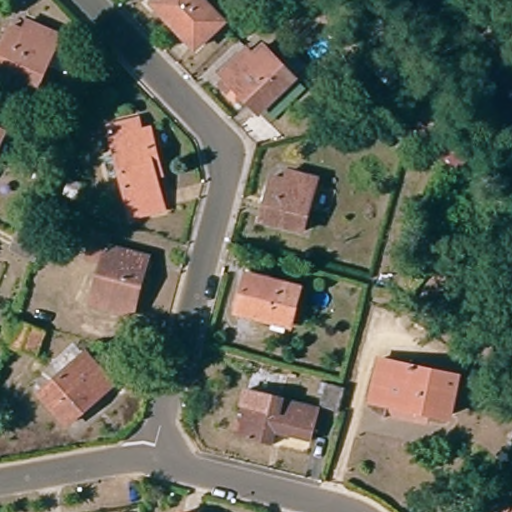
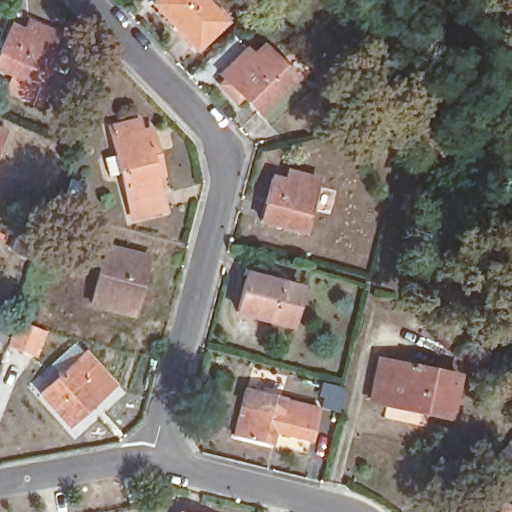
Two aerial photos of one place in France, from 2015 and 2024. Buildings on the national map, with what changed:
unchanged [(222,19),(196,45),(155,2),(157,0),(205,0),(222,19)]
unchanged [(6,90),(12,75),(0,69),(0,51),(10,26),(30,35),(35,25),(59,35),(37,85),(45,89),(39,105),(6,90)]
unchanged [(243,51),(250,59),(265,45),(295,75),(259,110),(222,73),(243,51)]
unchanged [(395,79),(383,90),(370,75),(380,64),(395,79)]
unchanged [(442,159),(411,123),(416,105),(417,104),(455,149),(442,159)]
unchanged [(145,116),(147,128),(157,126),(171,175),(165,175),(173,205),(137,214),(125,168),(116,170),(110,149),(120,146),(114,123),(145,116)]
unchanged [(4,122),(0,132),(0,120),(4,122)]
unchanged [(316,170),(303,226),(262,216),(275,172),(295,177),(297,167),(316,170)]
unchanged [(110,235),(107,246),(132,252),(131,257),(148,262),(134,313),(91,302),(101,262),(85,258),(92,230),(110,235)]
unchanged [(35,241),(26,264),(1,255),(11,231),(35,241)]
unchanged [(252,273),(304,285),(295,325),(243,311),(252,273)]
unchanged [(37,332),(30,356),(1,347),(0,350),(0,335),(5,337),(10,322),(37,332)]
unchanged [(86,346),(113,376),(68,416),(40,386),(86,346)]
unchanged [(372,399),(378,352),(465,369),(457,420),(372,399)]
unchanged [(327,376),(345,381),(338,406),(322,401),(327,376)]
unchanged [(310,435),(273,425),(271,438),(234,428),(247,383),(317,401),(310,435)]
unchanged [(512,502),(512,512),(496,512),(502,498),(512,502)]
unchanged [(188,512),(181,512),(181,510),(188,512)]

